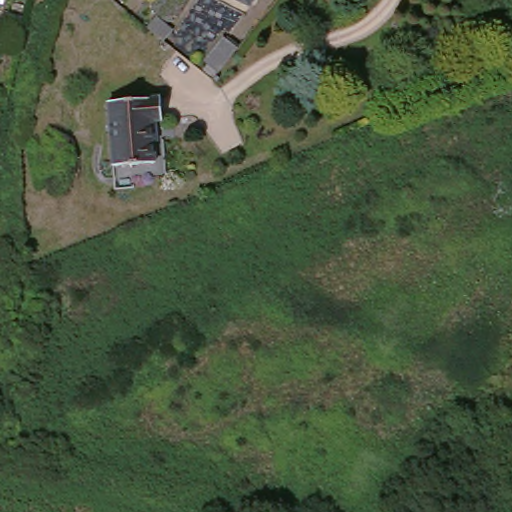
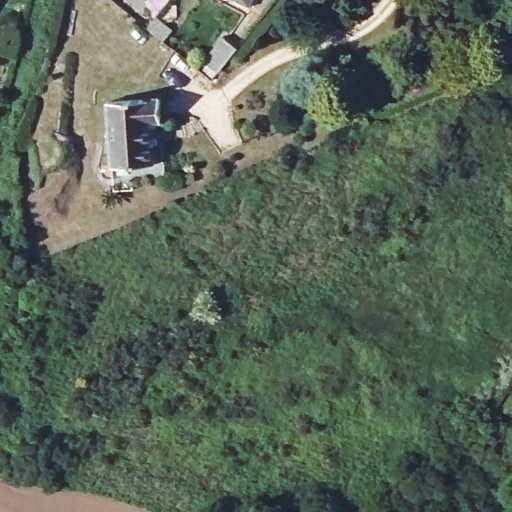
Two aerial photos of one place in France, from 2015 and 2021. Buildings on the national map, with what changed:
unchanged [(245,0),(254,0),(252,4),(245,0)]
unchanged [(159,12),(175,25),(166,37),(149,24),(159,12)]
unchanged [(209,61),(205,57),(226,34),(241,45),(225,65),(214,77),(203,67),(209,61)]
unchanged [(163,100),(165,121),(157,122),(158,142),(156,144),(157,167),(115,169),(111,104),(163,100)]

